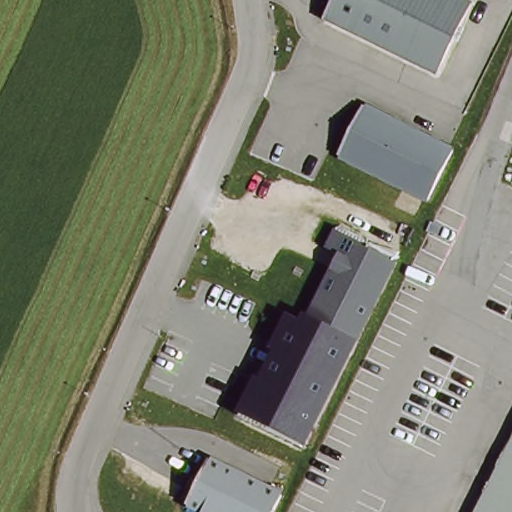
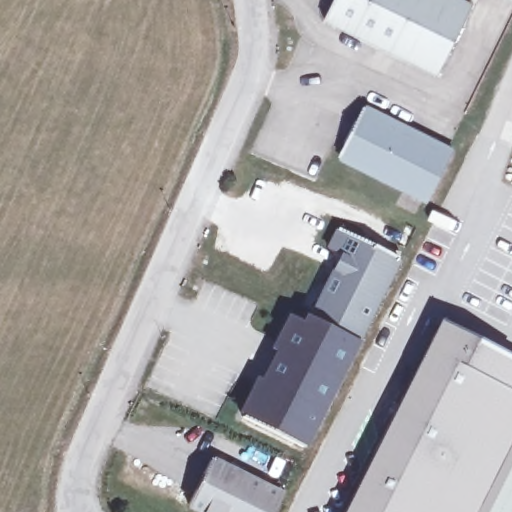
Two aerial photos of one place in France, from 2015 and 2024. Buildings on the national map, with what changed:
unchanged [(438,76),(326,19),(336,0),(462,0),(474,6),(438,76)]
unchanged [(454,155),(430,205),(340,161),(364,112),(454,155)]
unchanged [(400,257),(360,341),(313,321),(345,256),(332,250),(342,229),(400,257)]
unchanged [(307,318),(313,321),(360,341),(307,450),(240,418),(291,312),(291,311),(307,318)]
new [(438,323),(512,361),(512,439),(475,512),(343,512),(438,323)]
unchanged [(512,512),(475,512),(512,439),(512,512)]
unchanged [(282,512),(194,512),(192,512),(214,467),(287,502),(282,512)]

